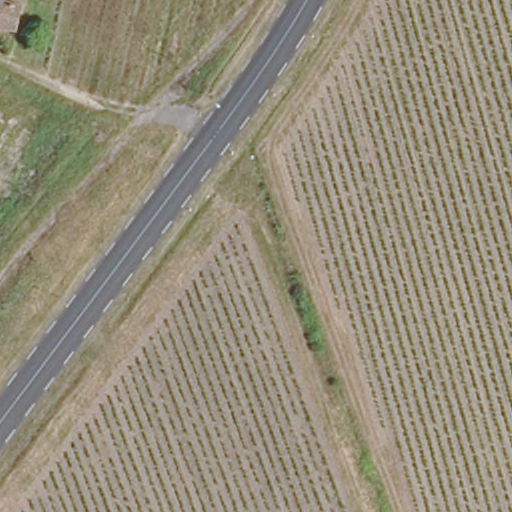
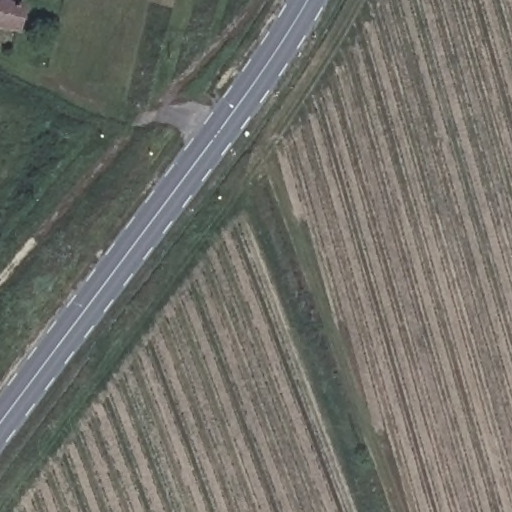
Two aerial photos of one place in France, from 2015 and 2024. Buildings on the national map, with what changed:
unchanged [(16,1),(11,25),(0,22),(0,0),(11,0),(16,1)]

